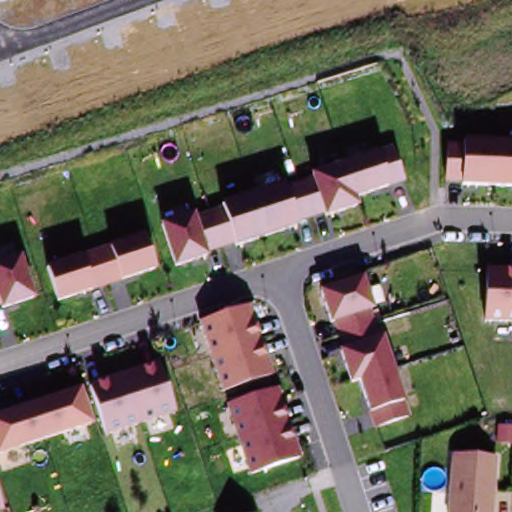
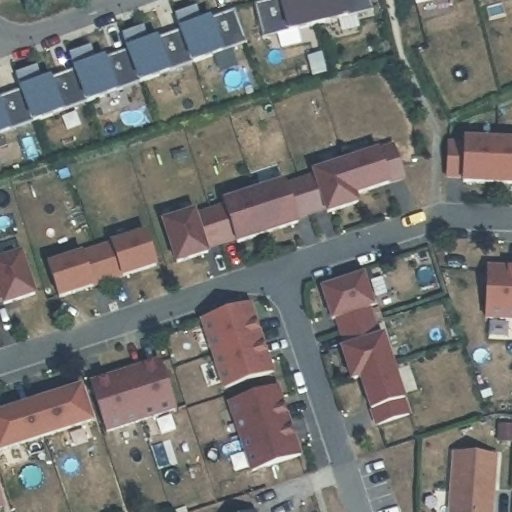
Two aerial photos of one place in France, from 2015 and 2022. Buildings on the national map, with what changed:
new [(374,11),(347,13),(349,18),(288,34),(286,27),(263,37),(254,4),(266,0),(371,0),(374,11)]
new [(413,7),(412,0),(441,0),(413,7)]
new [(246,43),(221,49),(223,55),(192,67),(189,59),(168,67),(171,74),(138,86),(135,78),(114,86),(117,93),(87,105),(83,96),(61,105),(64,113),(32,126),(29,118),(10,126),(13,133),(0,138),(0,92),(18,86),(14,75),(38,65),(43,77),(71,67),(67,55),(92,45),(97,57),(125,48),(121,35),(144,26),(150,37),(177,28),(173,15),(197,6),(202,17),(210,14),(234,10),(246,43)]
unchanged [(461,178),(445,178),(446,140),(512,142),(512,188),(461,185),(461,178)]
unchanged [(404,183),(356,201),(359,207),(328,217),(324,211),(297,219),(299,228),(236,248),(233,242),(208,250),(210,258),(176,268),(161,223),(392,146),(404,183)]
unchanged [(157,270),(59,303),(46,265),(142,232),(157,270)]
unchanged [(37,301),(2,312),(0,302),(0,258),(21,252),(37,301)]
unchanged [(512,268),(512,323),(485,322),(487,267),(512,268)]
unchanged [(373,426),(358,382),(351,384),(320,290),(362,276),(409,413),(373,426)]
unchanged [(251,304),(273,375),(222,392),(200,321),(251,304)]
unchanged [(174,411),(106,434),(91,384),(158,361),(174,411)]
unchanged [(81,388),(92,425),(0,455),(0,417),(81,388)]
unchanged [(251,476),(228,406),(277,388),(299,457),(251,476)]
unchanged [(492,512),(448,512),(450,454),(496,456),(492,512)]
unchanged [(2,509),(0,510),(0,502),(2,509)]

